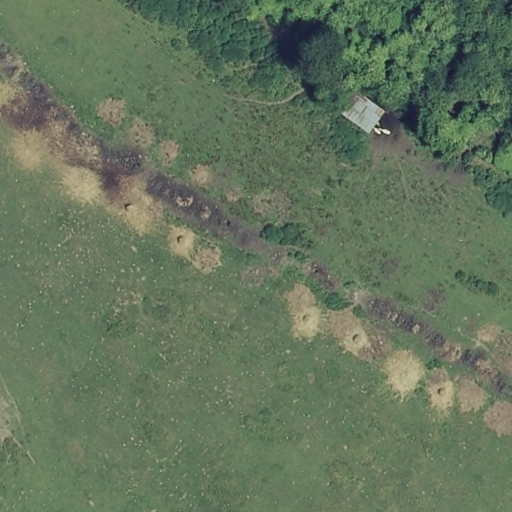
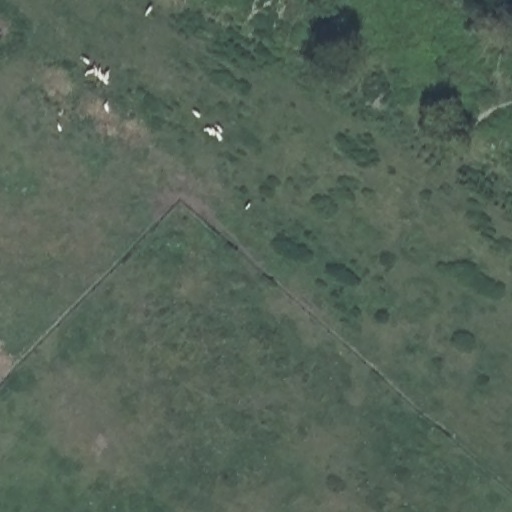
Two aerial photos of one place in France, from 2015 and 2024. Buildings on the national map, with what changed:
unchanged [(364,135),(327,110),(345,84),(381,111),(364,135)]

